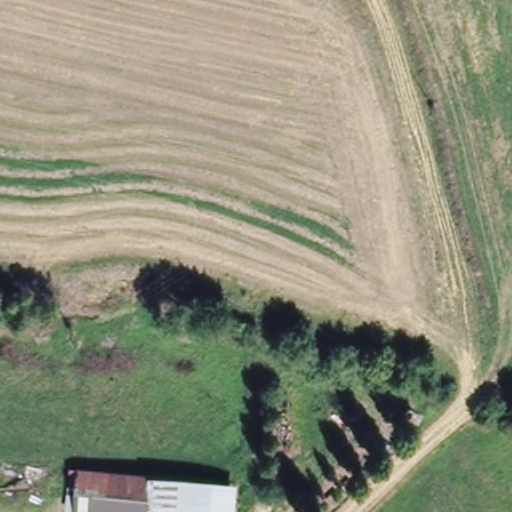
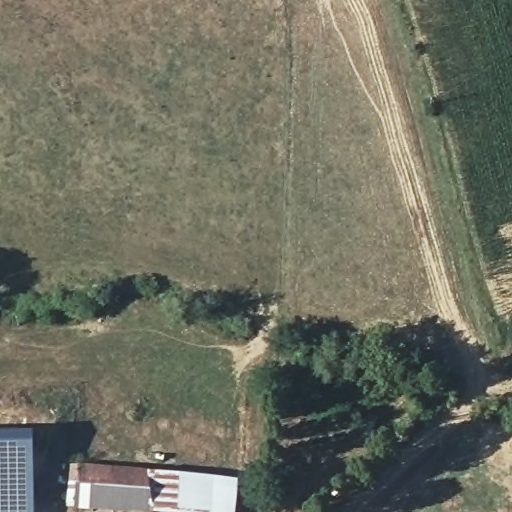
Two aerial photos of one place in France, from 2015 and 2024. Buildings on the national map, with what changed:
new [(35,512),(0,512),(0,437),(35,434),(35,512)]
unchanged [(62,505),(66,462),(237,478),(233,512),(144,512),(62,505)]

